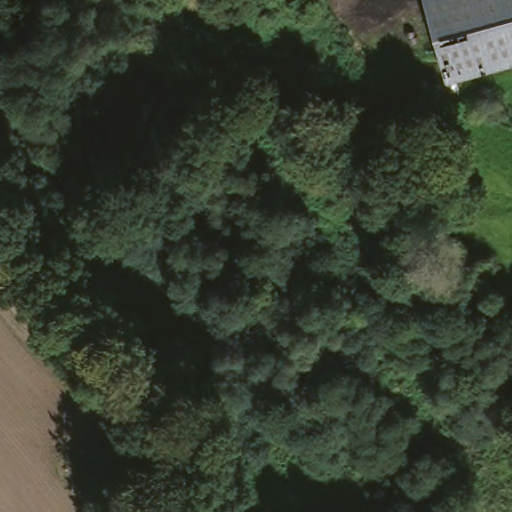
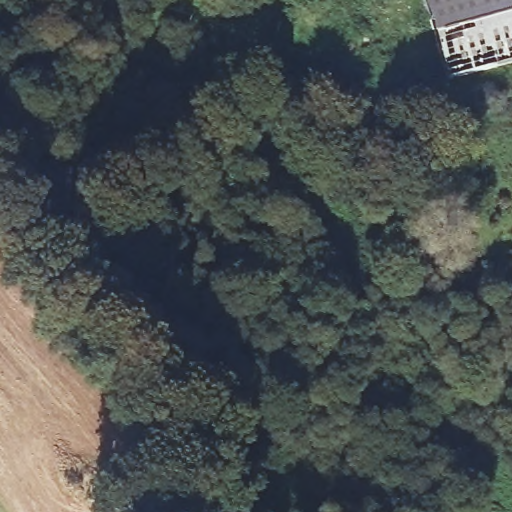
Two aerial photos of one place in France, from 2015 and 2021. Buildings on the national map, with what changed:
unchanged [(426,6),(424,0),(512,0),(512,66),(446,82),(426,6)]

